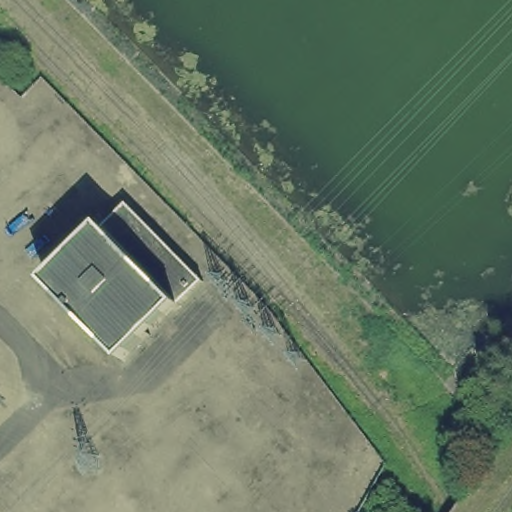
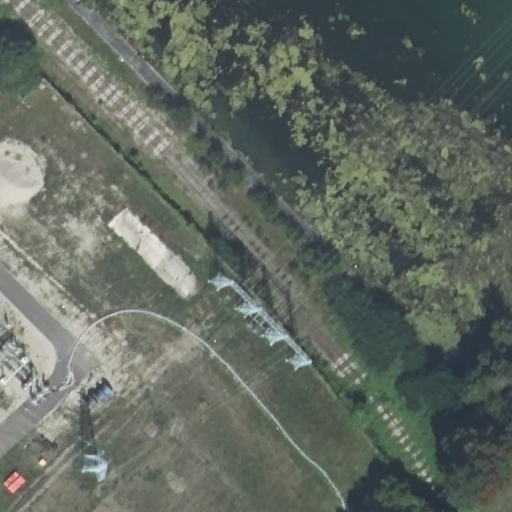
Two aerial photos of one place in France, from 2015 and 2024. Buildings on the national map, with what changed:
demolished [(173,302),(120,350),(47,274),(101,225),(173,302)]

